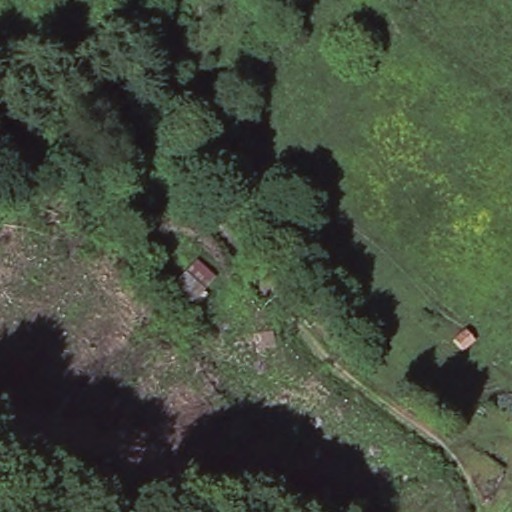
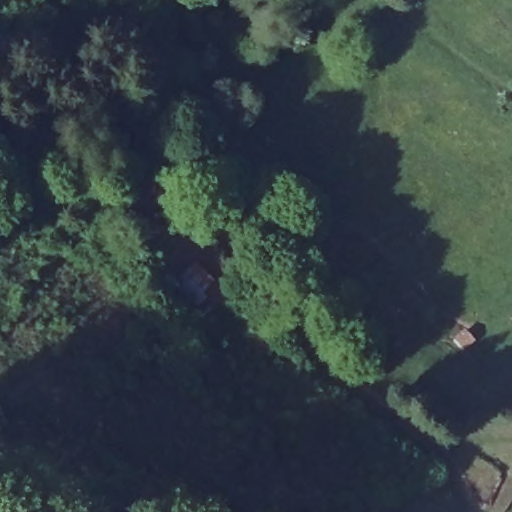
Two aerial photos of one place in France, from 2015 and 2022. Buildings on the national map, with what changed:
unchanged [(218,282),(197,309),(173,284),(198,262),(218,282)]
unchanged [(470,329),(479,339),(468,350),(459,340),(470,329)]

